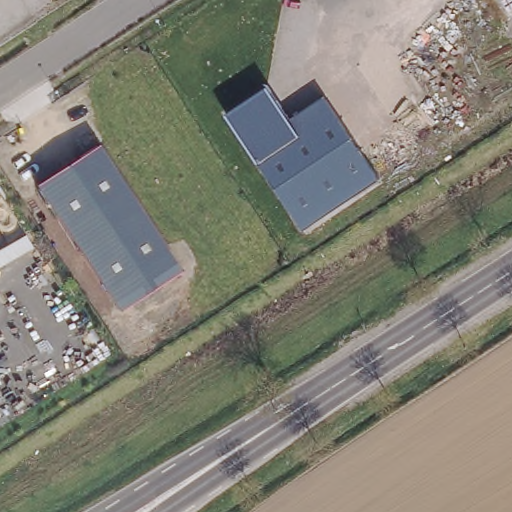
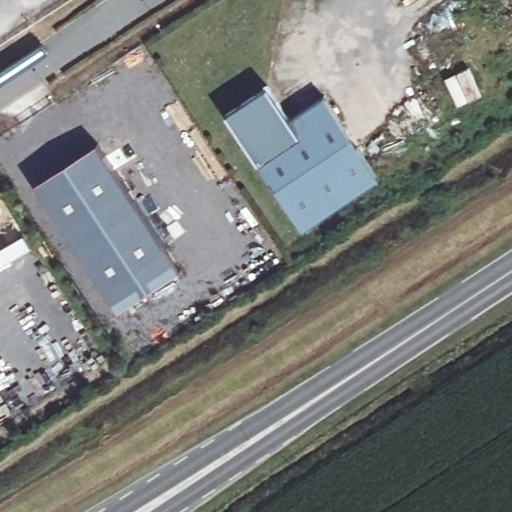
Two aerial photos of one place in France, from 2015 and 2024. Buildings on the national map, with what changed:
unchanged [(259,162),(226,113),(270,85),(290,119),(327,97),(379,177),(303,230),(259,162)]
unchanged [(37,182),(100,142),(182,267),(119,309),(37,182)]
unchanged [(24,245),(0,261),(0,242),(16,232),(24,245)]

